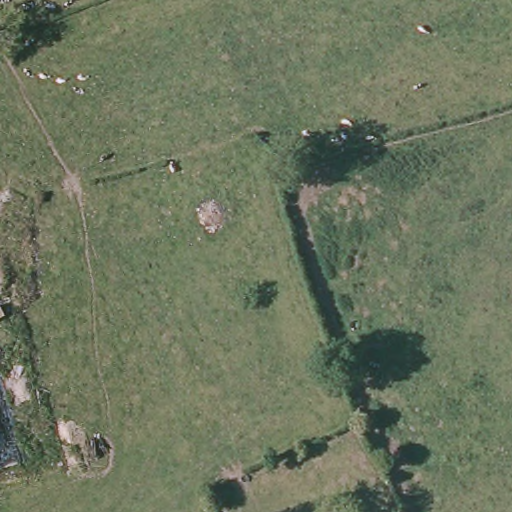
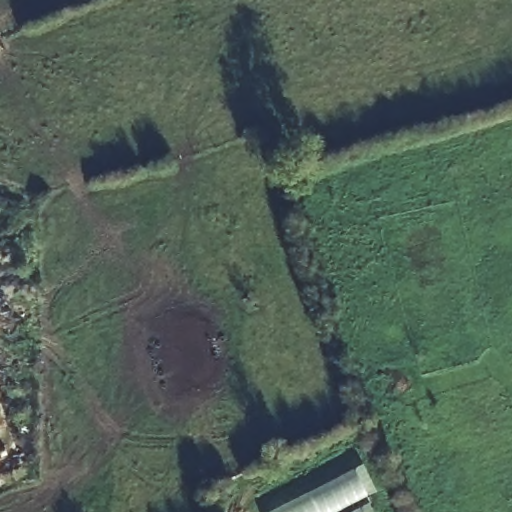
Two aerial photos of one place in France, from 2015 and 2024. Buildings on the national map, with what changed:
new [(355,504),(359,512),(273,512),(353,470),(367,498),(355,504)]

